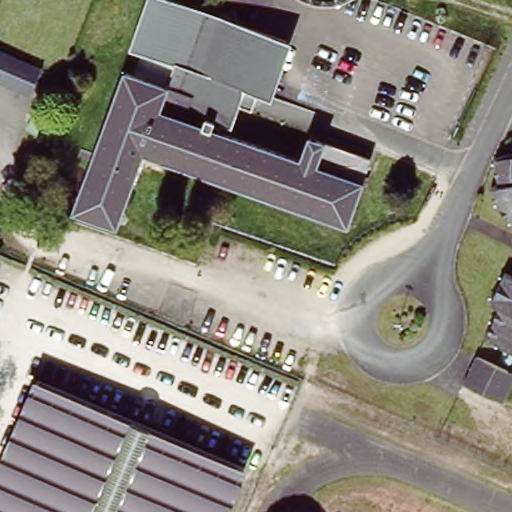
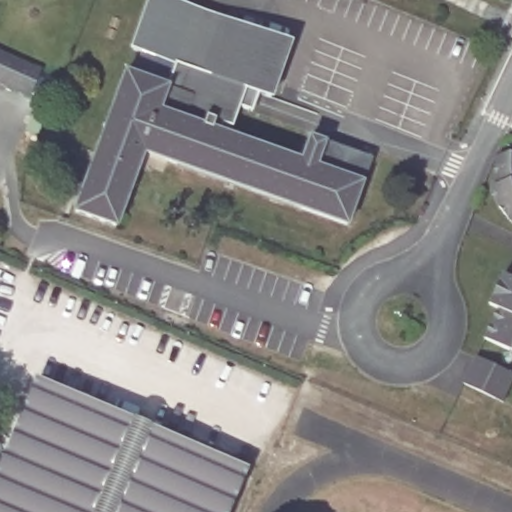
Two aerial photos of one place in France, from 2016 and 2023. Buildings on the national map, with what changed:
unchanged [(370,160),(346,226),(165,161),(164,165),(145,157),(135,183),(133,182),(115,227),(76,213),(127,73),(132,75),(141,51),(135,49),(152,0),(174,0),(287,42),(267,95),(260,92),(253,110),(237,105),(230,126),(222,124),(219,133),(301,163),(310,139),(370,160)]
unchanged [(30,96),(0,84),(0,50),(42,67),(30,96)]
unchanged [(35,135),(23,130),(31,110),(43,115),(35,135)]
unchanged [(509,219),(506,215),(503,211),(500,206),(497,201),(495,196),(493,192),(491,187),(490,182),(490,176),(489,172),(496,170),(496,160),(512,156),(512,221),(509,219)]
unchanged [(483,336),(498,306),(490,302),(505,271),(512,275),(512,351),(483,336)]
unchanged [(476,356),(512,372),(512,382),(503,401),(461,383),(476,356)]
unchanged [(242,470),(225,512),(0,512),(0,468),(36,384),(242,470)]

